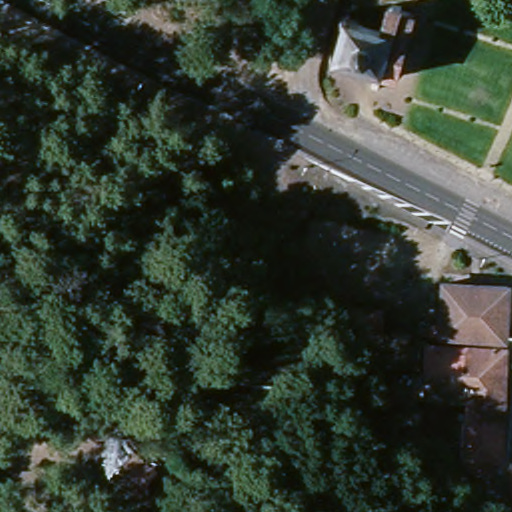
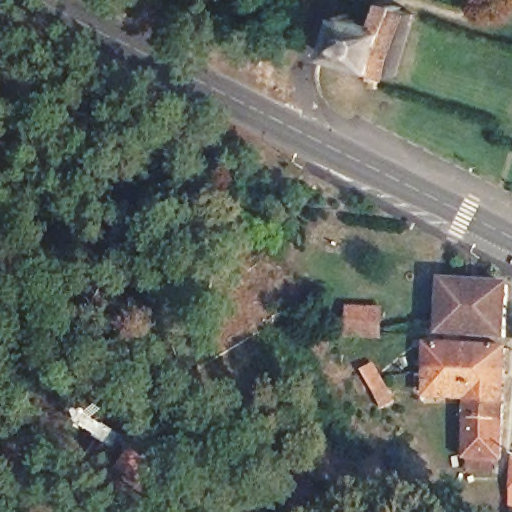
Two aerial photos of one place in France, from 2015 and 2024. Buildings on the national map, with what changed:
unchanged [(335,56),(343,27),(338,25),(340,21),(345,22),(345,18),(352,20),(351,24),(386,34),(388,25),(383,24),(386,12),(392,8),(400,10),(399,14),(413,17),(412,24),(398,20),(376,91),(370,88),(372,80),(331,67),(333,62),(328,61),(330,55),(335,56)]
unchanged [(417,325),(440,325),(442,283),(508,288),(505,338),(438,335),(417,334),(417,325)]
unchanged [(385,316),(383,342),(351,341),(352,313),(385,316)]
unchanged [(466,472),(466,458),(463,458),(466,398),(422,397),(425,347),(505,352),(498,460),(491,460),(490,473),(466,472)]
unchanged [(388,398),(376,405),(360,377),(372,372),(388,398)]
unchanged [(125,443),(140,453),(134,461),(154,475),(140,494),(107,469),(123,447),(125,443)]
unchanged [(512,473),(512,508),(508,508),(512,473)]

